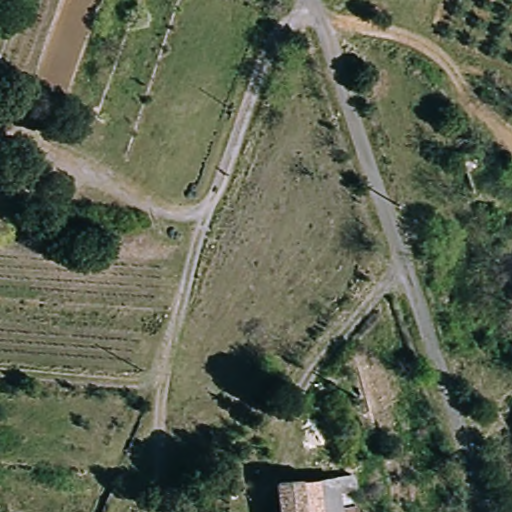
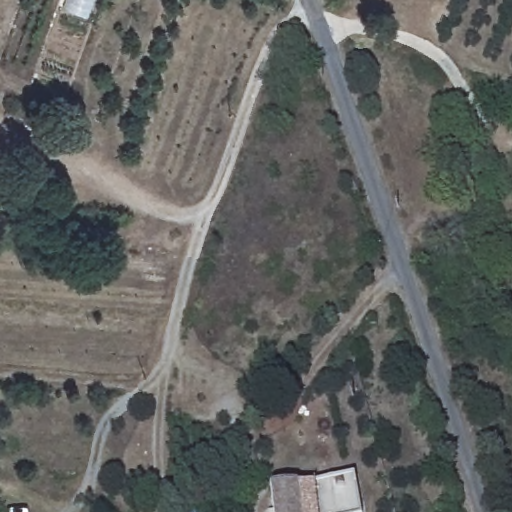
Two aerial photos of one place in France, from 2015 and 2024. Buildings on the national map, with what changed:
unchanged [(484,164),(496,199),(482,204),(470,169),(484,164)]
unchanged [(331,494),(340,493),(344,512),(275,512),(272,489),(330,481),(331,494)]
unchanged [(196,507),(200,512),(188,512),(196,507)]

